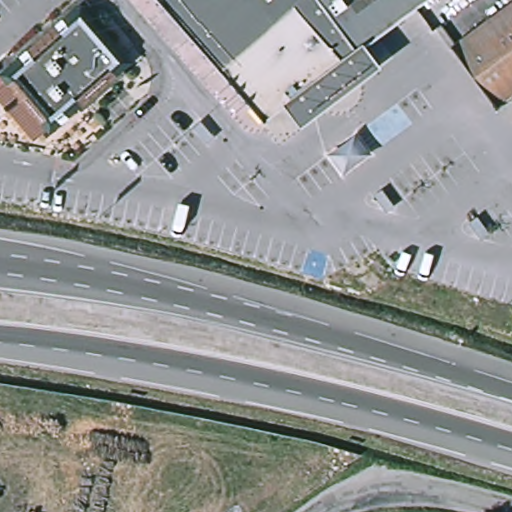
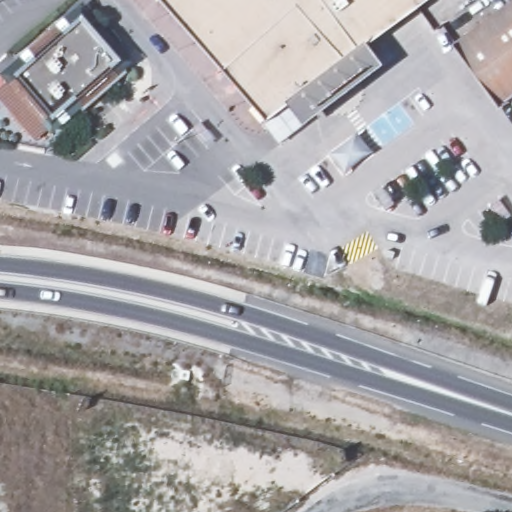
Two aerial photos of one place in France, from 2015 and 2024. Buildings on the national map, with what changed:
unchanged [(227,73),(164,0),(292,0),(299,9),(227,73)]
unchanged [(236,83),(227,73),(299,9),(292,0),(432,0),(290,104),(270,119),(253,100),(236,83)]
unchanged [(453,39),(507,0),(512,0),(512,92),(498,101),(453,39)]
unchanged [(93,73),(95,75),(35,128),(0,87),(0,75),(55,29),(57,31),(70,20),(107,61),(93,73)]
unchanged [(114,79),(107,69),(123,55),(132,63),(114,79)]
unchanged [(229,249),(218,247),(223,227),(233,229),(229,249)]

